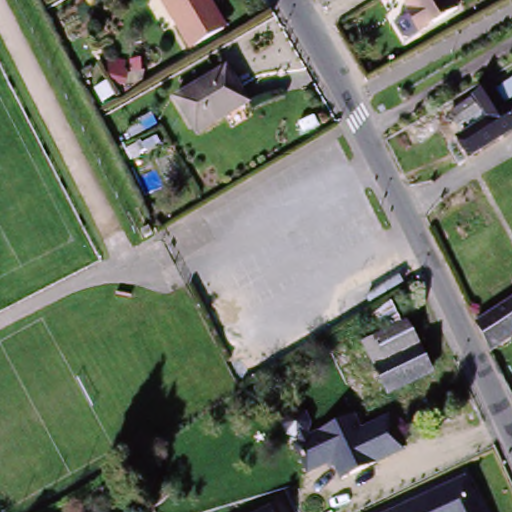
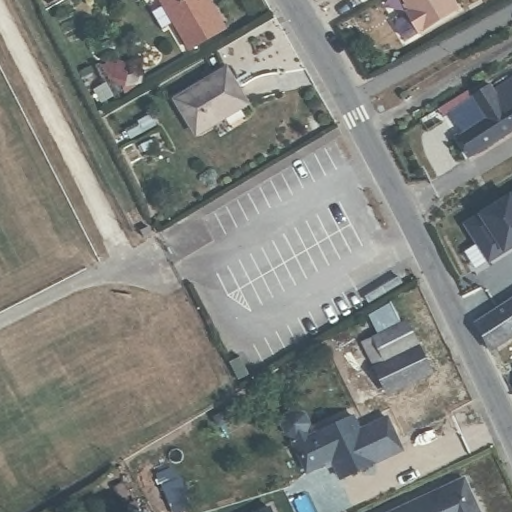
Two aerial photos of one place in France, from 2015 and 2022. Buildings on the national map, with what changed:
unchanged [(170,0),(213,0),(226,24),(195,42),(170,0)]
unchanged [(459,7),(422,30),(410,10),(415,7),(410,0),(455,0),(459,7)]
unchanged [(246,104),(196,134),(175,100),(226,70),(246,104)]
unchanged [(467,157),(455,137),(465,131),(460,123),(453,127),(445,113),(466,101),(475,114),(478,112),(468,99),(485,89),(488,94),(512,79),(512,128),(467,157)]
new [(505,254),(490,262),(489,260),(476,268),(465,252),(477,245),(464,225),(479,217),(478,214),(510,193),(511,195),(512,195),(512,249),(505,254)]
unchanged [(477,317),(512,295),(512,332),(490,347),(475,318),(477,317)]
unchanged [(386,393),(362,343),(372,339),(406,323),(416,344),(430,372),(386,393)]
unchanged [(392,418),(407,450),(345,478),(337,460),(312,472),(300,444),(357,416),(365,431),(392,418)]
unchanged [(480,512),(395,512),(465,480),(480,512)]
unchanged [(271,512),(264,512),(270,510),(271,512)]

